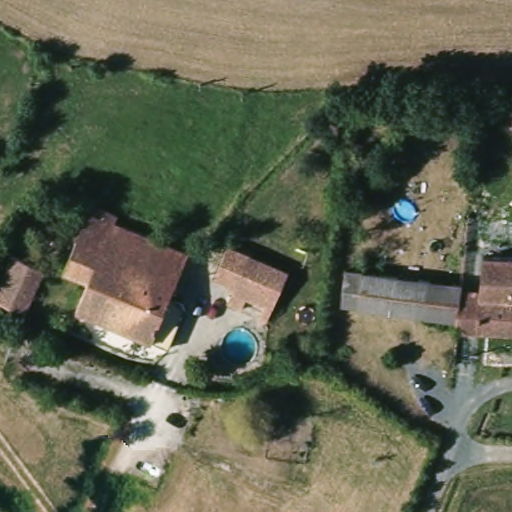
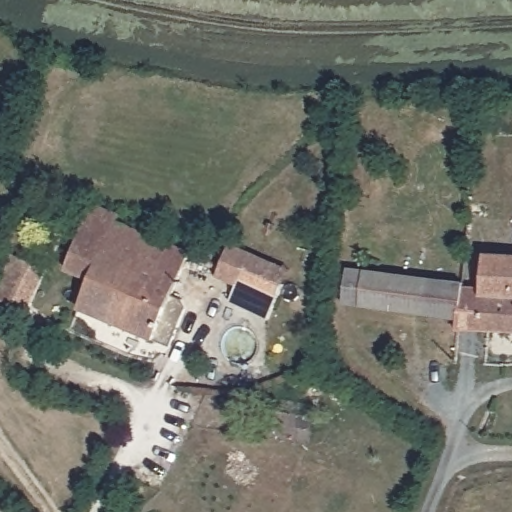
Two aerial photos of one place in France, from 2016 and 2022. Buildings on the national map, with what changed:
unchanged [(159,259),(145,290),(156,297),(138,337),(57,301),(94,210),(100,213),(164,242),(159,259)]
unchanged [(48,254),(34,248),(37,240),(38,239),(45,227),(74,241),(65,262),(48,254)]
unchanged [(165,240),(170,232),(171,231),(173,231),(174,232),(192,241),(202,246),(191,273),(159,259),(164,242),(165,240)]
unchanged [(202,246),(203,245),(209,234),(219,236),(239,247),(234,262),(271,281),(256,319),(209,304),(216,283),(191,273),(202,246)]
unchanged [(9,268),(23,274),(40,282),(27,313),(10,306),(0,301),(0,284),(0,283),(2,279),(0,277),(0,253),(1,253),(12,260),(9,268)]
unchanged [(478,285),(480,253),(512,254),(512,333),(457,331),(457,320),(463,286),(478,285)]
unchanged [(457,320),(342,307),(347,268),(464,279),(463,286),(457,320)]

